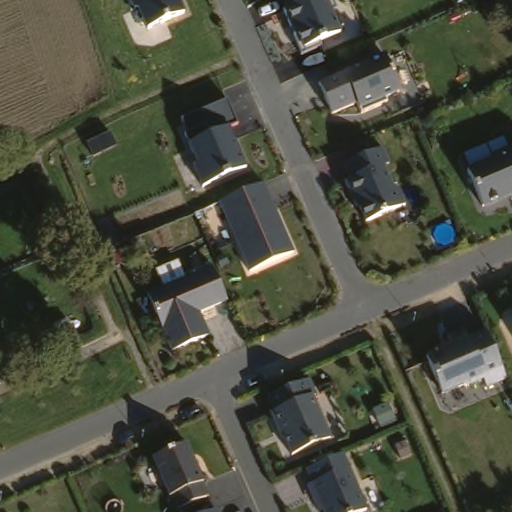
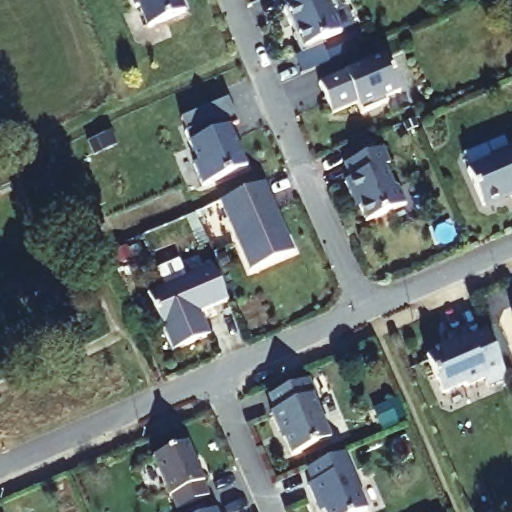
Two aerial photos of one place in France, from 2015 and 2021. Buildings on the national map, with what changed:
unchanged [(145,31),(130,0),(180,0),(184,14),(145,31)]
unchanged [(300,47),(281,0),(327,0),(340,31),(300,47)]
unchanged [(400,89),(355,108),(353,101),(328,112),(313,78),(383,51),(400,89)]
unchanged [(239,121),(230,125),(246,169),(199,186),(176,114),(227,95),(239,121)]
unchanged [(356,196),(353,197),(346,181),(351,179),(344,164),(382,146),(389,163),(384,165),(393,185),(398,187),(406,203),(368,221),(356,196)]
unchanged [(500,166),(499,163),(512,158),(512,203),(489,213),(474,177),(500,166)]
unchanged [(245,188),(266,180),(273,196),(269,198),(272,205),(277,207),(282,218),(280,224),(283,231),(287,229),(295,249),(250,268),(221,199),(245,188)]
unchanged [(213,266),(227,301),(211,307),(210,303),(202,306),(200,311),(209,335),(172,349),(150,291),(213,266)]
unchanged [(494,379),(491,372),(473,379),(469,378),(448,387),(433,350),(459,338),(455,329),(471,322),(475,331),(493,324),(512,367),(512,371),(494,379)]
unchanged [(280,426),(278,427),(270,410),(275,409),(268,394),(308,377),(314,392),(311,394),(329,436),(292,453),(280,426)]
unchanged [(176,495),(175,495),(159,456),(193,442),(209,481),(208,481),(214,495),(182,509),(176,495)]
unchanged [(334,457),(349,450),(374,505),(357,512),(333,512),(326,497),(322,499),(314,483),(319,480),(313,467),(334,457)]
unchanged [(220,508),(222,512),(210,512),(220,508)]

